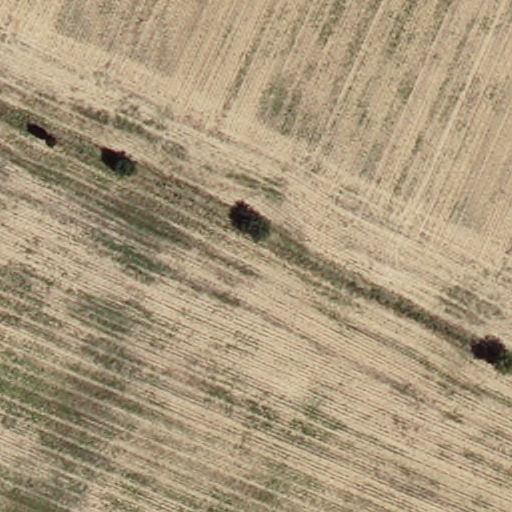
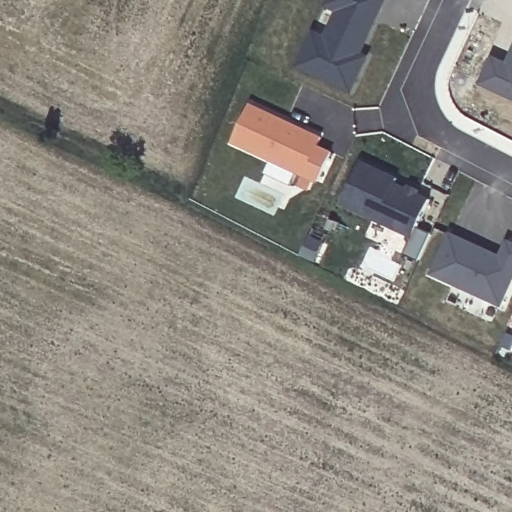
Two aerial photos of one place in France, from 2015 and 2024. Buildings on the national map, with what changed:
new [(325,6),(327,6),(330,0),(384,0),(378,12),(371,27),(358,56),(365,58),(350,91),(298,67),(314,35),(312,34),(325,6)]
new [(494,56),(507,62),(512,53),(512,99),(480,85),(494,56)]
new [(285,122),(294,127),(320,139),(316,147),(330,154),(316,182),(232,143),(249,106),(285,122)]
new [(362,162),(399,179),(396,184),(430,200),(414,237),(342,204),(362,162)]
new [(478,247),(491,253),(499,257),(506,241),(512,244),(512,281),(500,306),(430,275),(449,234),(478,247)]

